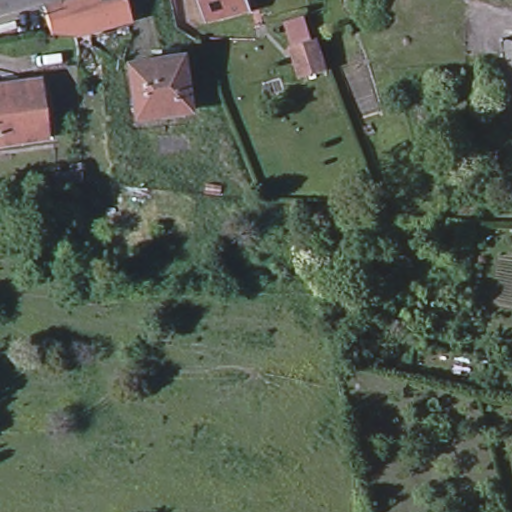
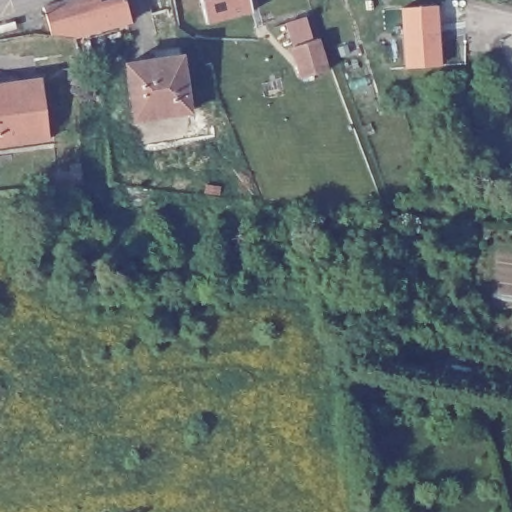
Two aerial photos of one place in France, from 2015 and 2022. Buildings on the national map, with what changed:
unchanged [(68,31),(67,26),(65,21),(45,26),(38,5),(53,0),(94,0),(120,0),(120,3),(122,9),(125,18),(68,34),(68,31)]
unchanged [(202,0),(250,0),(252,9),(208,21),(202,0)]
new [(435,5),(438,65),(405,66),(402,7),(435,5)]
unchanged [(303,76),(293,45),(317,36),(327,68),(303,76)]
unchanged [(182,56),(189,110),(135,118),(127,63),(182,56)]
unchanged [(16,81),(39,78),(47,138),(0,144),(0,89),(17,87),(16,81)]

